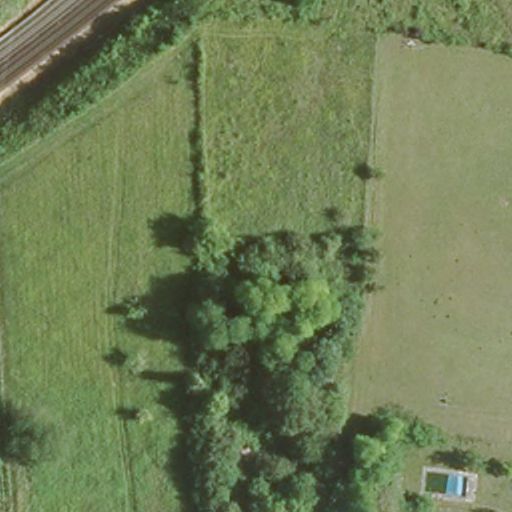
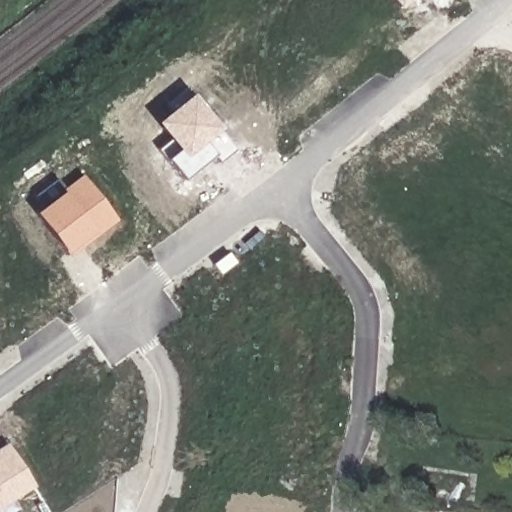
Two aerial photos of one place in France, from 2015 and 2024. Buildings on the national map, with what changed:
new [(396,0),(411,0),(402,7),(396,0)]
new [(218,127),(216,129),(232,148),(216,161),(211,154),(181,179),(157,149),(168,140),(154,122),(190,92),(218,127)]
new [(115,220),(67,256),(62,252),(32,212),(40,207),(34,194),(55,179),(62,188),(81,174),(115,220)]
new [(0,507),(0,445),(3,450),(8,447),(33,486),(0,507)]

